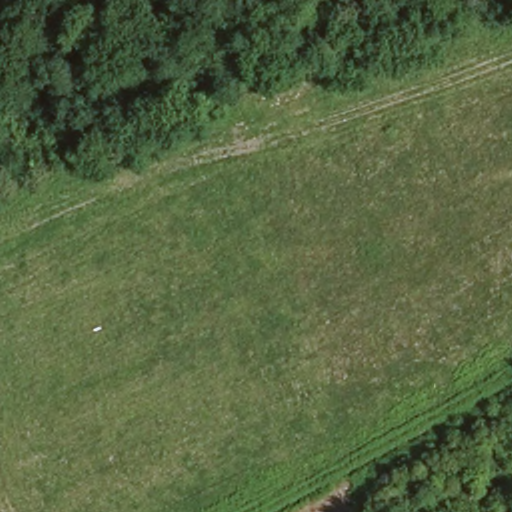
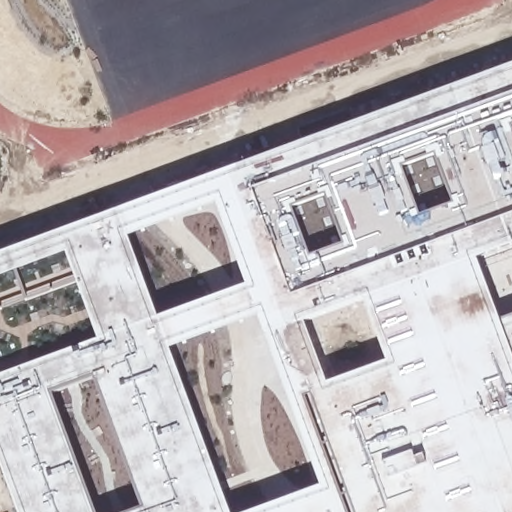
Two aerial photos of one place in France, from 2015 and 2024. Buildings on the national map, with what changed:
new [(478,259),(501,321),(512,316),(512,512),(19,512),(0,461),(0,254),(512,65),(512,246),(478,259)]

